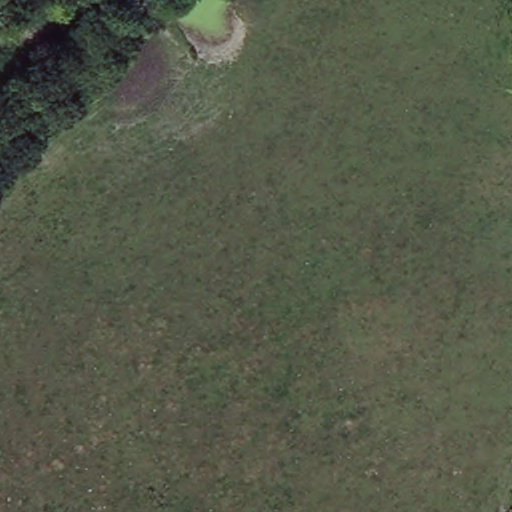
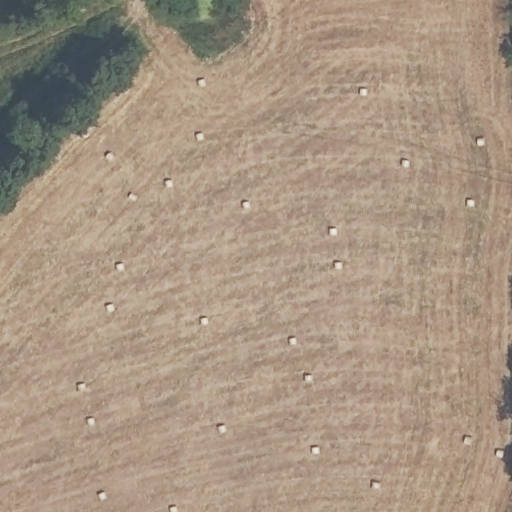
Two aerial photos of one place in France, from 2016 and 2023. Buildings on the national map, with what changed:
[]

